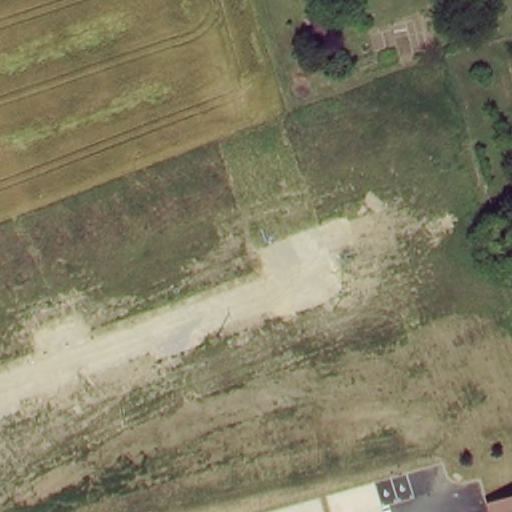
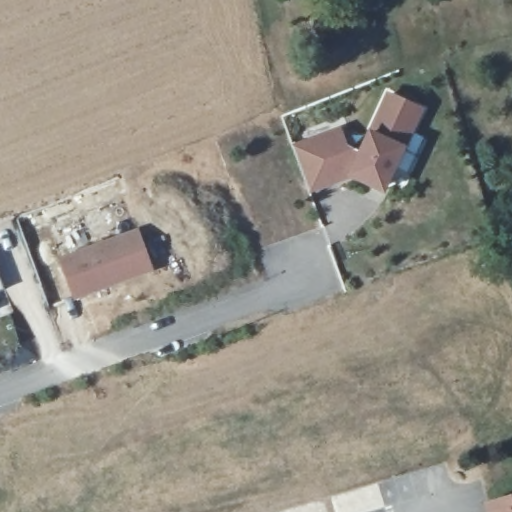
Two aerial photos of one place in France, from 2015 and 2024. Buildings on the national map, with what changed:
new [(405,148),(385,195),(352,180),(311,192),(293,145),(340,128),(346,145),(358,151),(368,130),(386,92),(423,108),(405,148)]
new [(74,300),(58,257),(138,229),(154,272),(74,300)]
new [(0,291),(0,282),(3,290),(0,291)]

